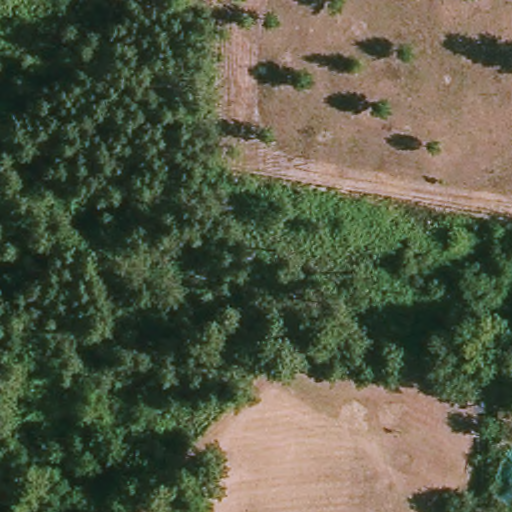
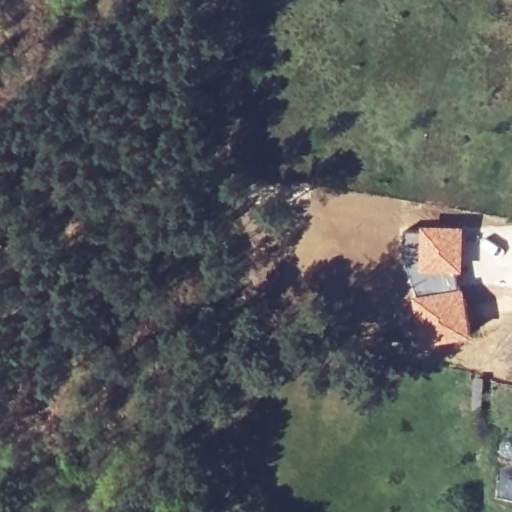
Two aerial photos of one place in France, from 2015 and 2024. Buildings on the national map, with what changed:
new [(473,336),(421,344),(415,292),(410,264),(407,229),(420,228),(421,224),(465,224),(465,271),(460,271),(462,285),(465,284),(473,336)]

